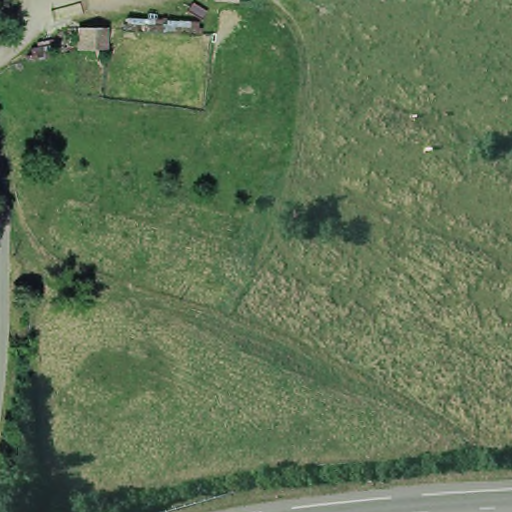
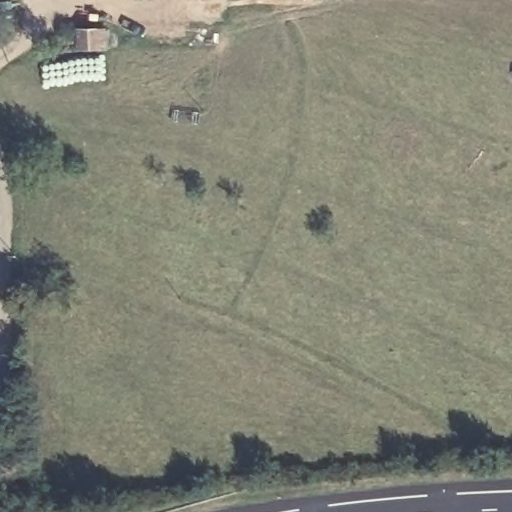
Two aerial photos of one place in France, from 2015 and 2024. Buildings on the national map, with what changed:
unchanged [(106,30),(105,50),(82,49),(82,29),(106,30)]

